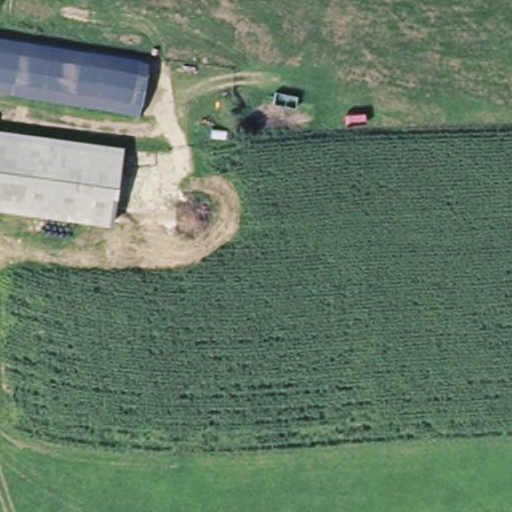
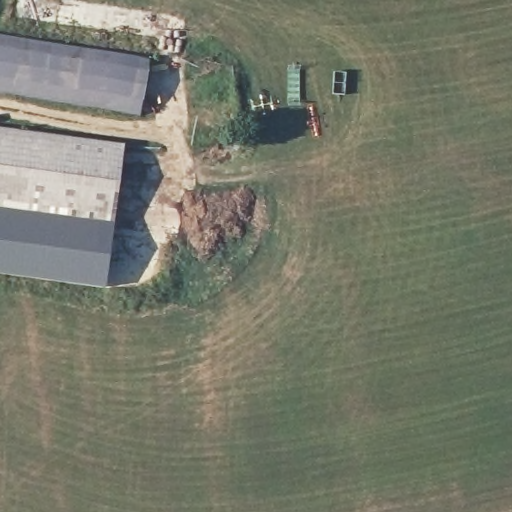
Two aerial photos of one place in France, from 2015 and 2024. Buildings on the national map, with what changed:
unchanged [(152,50),(142,109),(66,97),(0,86),(0,25),(65,35),(152,50)]
unchanged [(122,151),(109,227),(0,208),(0,130),(122,151)]
new [(109,227),(114,227),(105,288),(0,274),(0,208),(109,227)]

